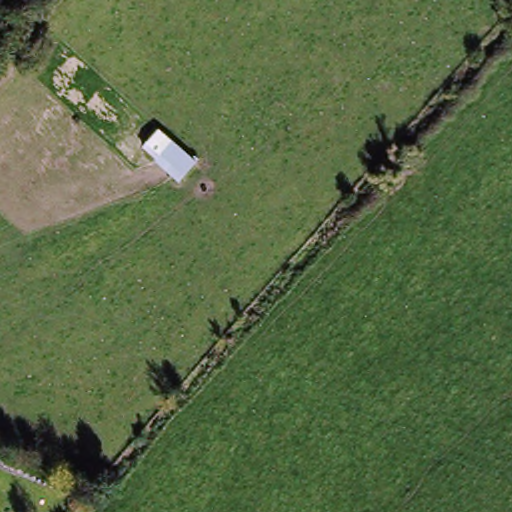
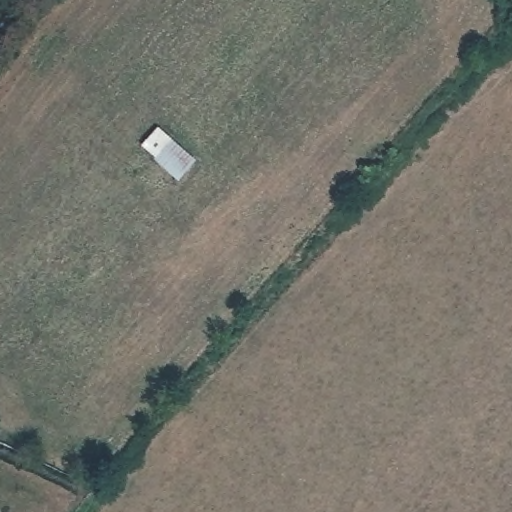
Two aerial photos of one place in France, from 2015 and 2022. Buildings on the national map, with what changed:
unchanged [(195,162),(176,181),(143,148),(160,131),(195,162)]

